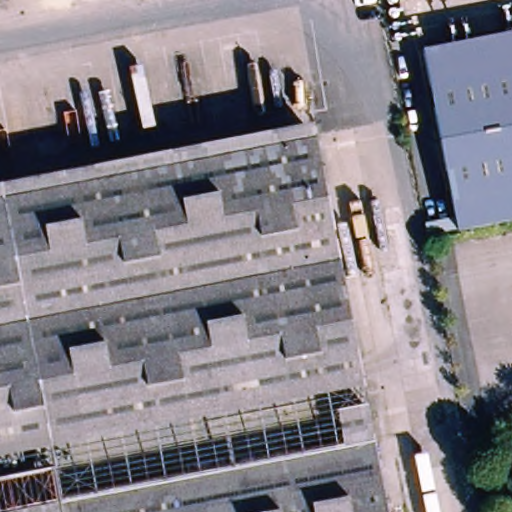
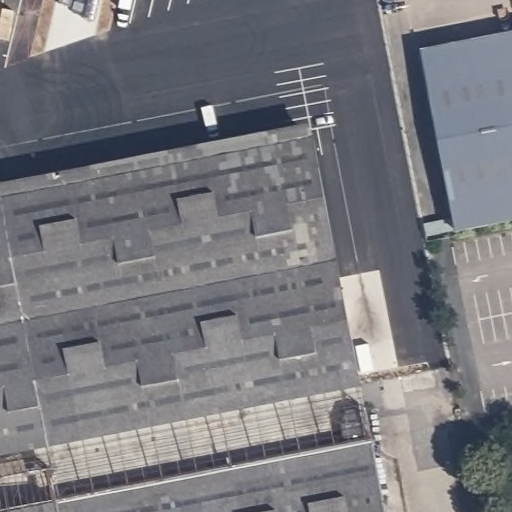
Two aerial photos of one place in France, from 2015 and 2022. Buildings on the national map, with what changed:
unchanged [(424,53),(512,36),(512,223),(457,234),(424,53)]
unchanged [(316,140),(389,512),(0,512),(0,195),(316,140)]

